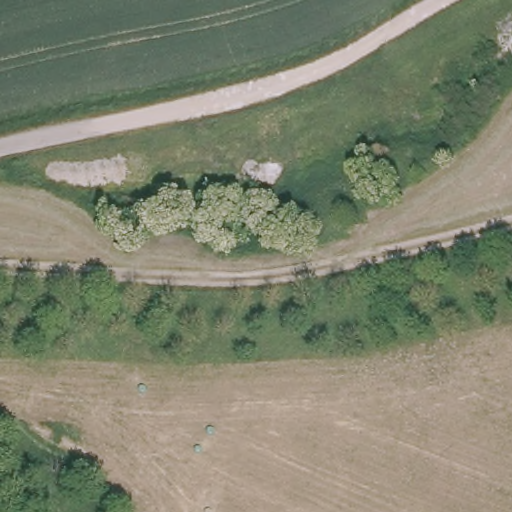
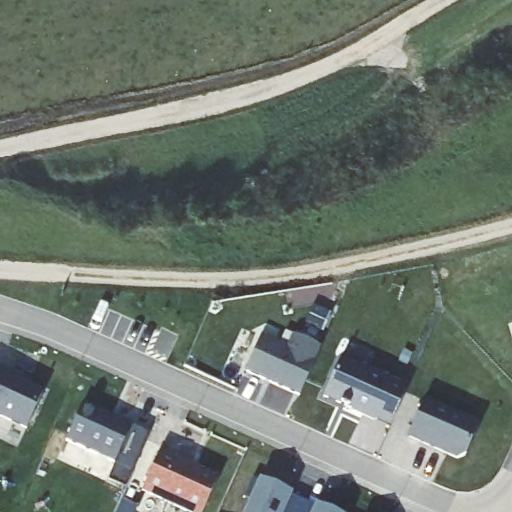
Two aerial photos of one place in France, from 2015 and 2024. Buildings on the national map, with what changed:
new [(257,334),(285,346),(291,332),(319,345),(297,393),(242,368),(257,334)]
new [(404,386),(387,423),(373,416),(372,417),(350,407),(350,406),(321,393),(337,356),(404,386)]
new [(23,426),(0,415),(0,371),(40,389),(23,426)]
new [(421,398),(477,422),(462,454),(455,457),(405,435),(421,398)]
new [(129,422),(112,460),(62,438),(80,400),(129,422)]
new [(172,453),(171,456),(215,475),(199,512),(192,512),(139,489),(157,446),(172,453)]
new [(257,484),(258,480),(292,496),(290,499),(313,509),(315,505),(331,512),(244,512),(248,504),(242,501),(250,483),(257,484)]

